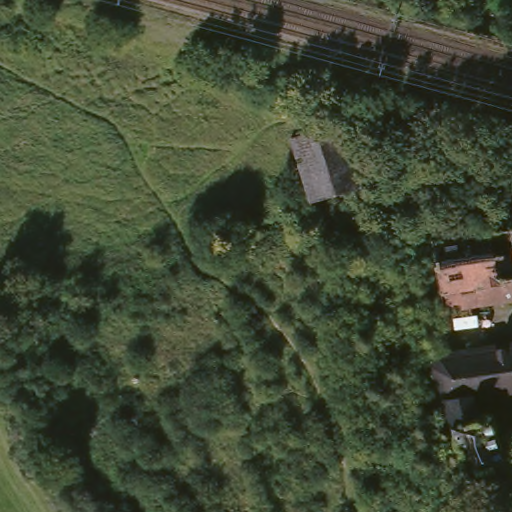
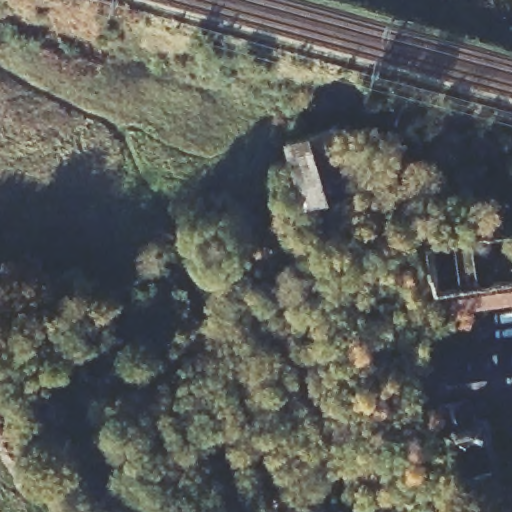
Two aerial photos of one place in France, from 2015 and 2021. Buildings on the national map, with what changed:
unchanged [(345,120),(366,184),(316,201),(294,140),(345,120)]
unchanged [(389,159),(410,156),(412,169),(393,171),(390,171),(389,159)]
unchanged [(471,240),(494,237),(512,235),(512,305),(438,315),(426,247),(425,245),(471,240)]
unchanged [(438,363),(443,355),(512,344),(512,386),(475,392),(481,412),(454,419),(438,363)]
unchanged [(482,414),(493,411),(508,459),(504,460),(511,483),(483,492),(479,493),(472,469),(469,470),(454,419),(481,412),(482,414)]

